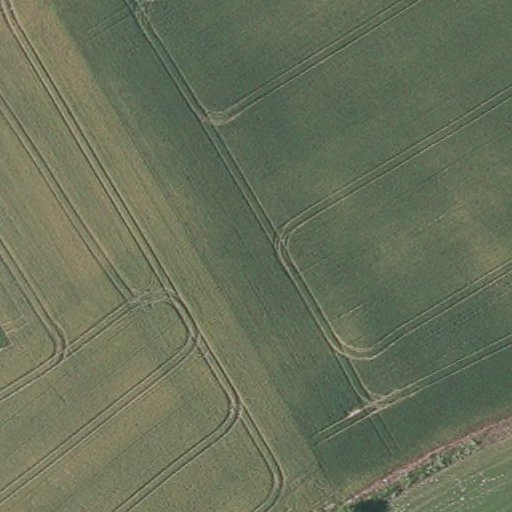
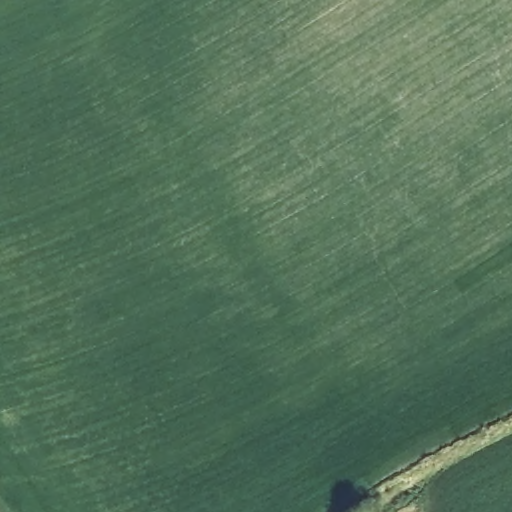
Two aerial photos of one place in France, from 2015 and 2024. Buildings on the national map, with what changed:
[]

